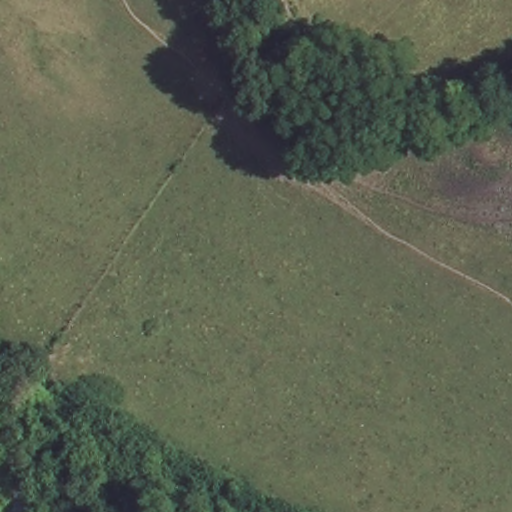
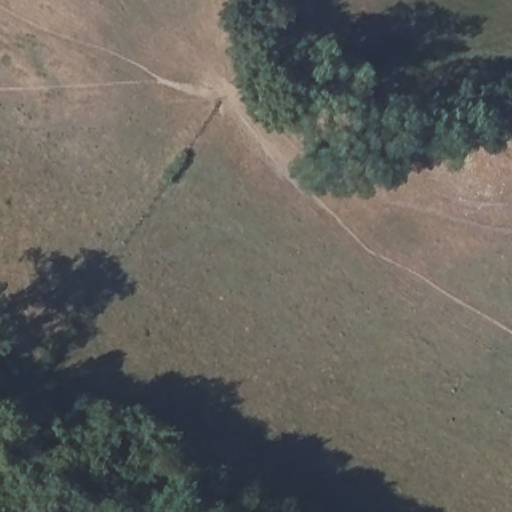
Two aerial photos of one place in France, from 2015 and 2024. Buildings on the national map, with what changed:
unchanged [(361,113),(321,90),(334,61),(376,84),(361,113)]

